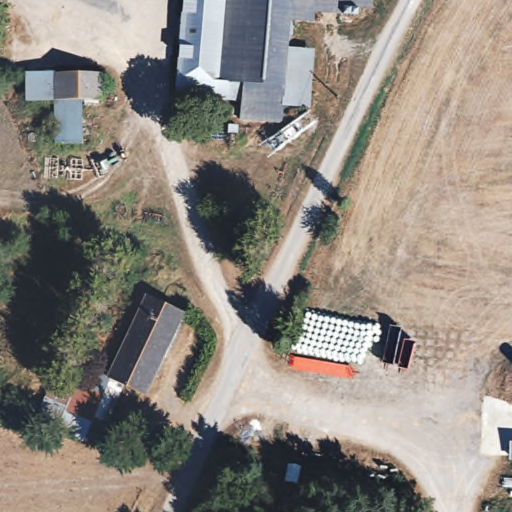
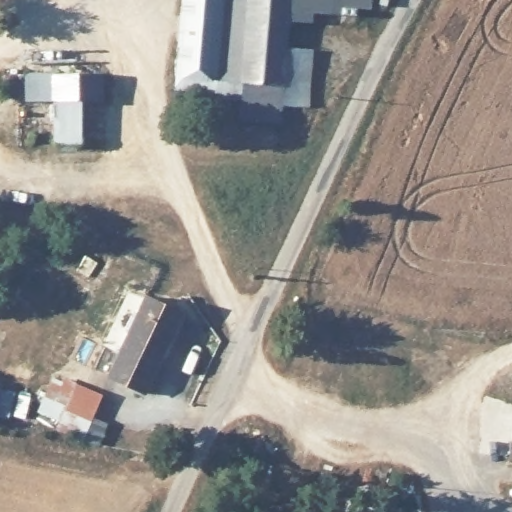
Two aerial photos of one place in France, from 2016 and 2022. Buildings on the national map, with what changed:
unchanged [(243,88),(240,123),(174,118),(183,0),(224,0),(218,85),(243,88)]
unchanged [(286,4),(283,51),(279,109),(278,125),(240,123),(243,88),(218,85),(224,0),(370,0),(369,10),(286,4)]
unchanged [(283,51),(313,52),(309,111),(279,109),(283,51)]
unchanged [(100,111),(53,110),(53,105),(23,104),(23,79),(53,79),(101,79),(100,111)]
unchanged [(100,111),(99,151),(52,150),(53,110),(100,111)]
unchanged [(142,298),(180,315),(142,396),(104,378),(142,298)]

